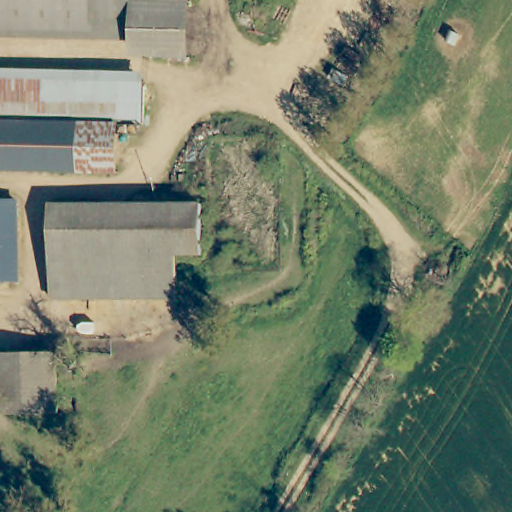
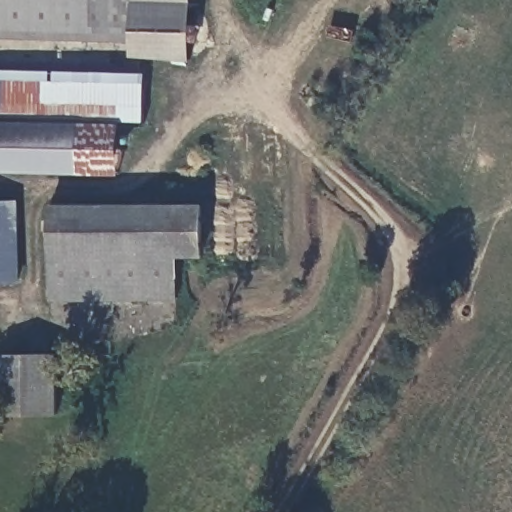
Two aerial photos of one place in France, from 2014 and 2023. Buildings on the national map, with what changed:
unchanged [(130,57),(0,53),(0,0),(191,0),(188,62),(130,57)]
unchanged [(144,84),(144,128),(119,127),(118,175),(0,172),(0,81),(144,84)]
unchanged [(0,283),(0,203),(16,203),(18,282),(0,283)]
unchanged [(55,208),(206,206),(207,258),(181,257),(56,257),(55,208)]
unchanged [(181,257),(181,300),(56,301),(56,257),(181,257)]
unchanged [(58,416),(0,416),(0,356),(57,355),(58,416)]

